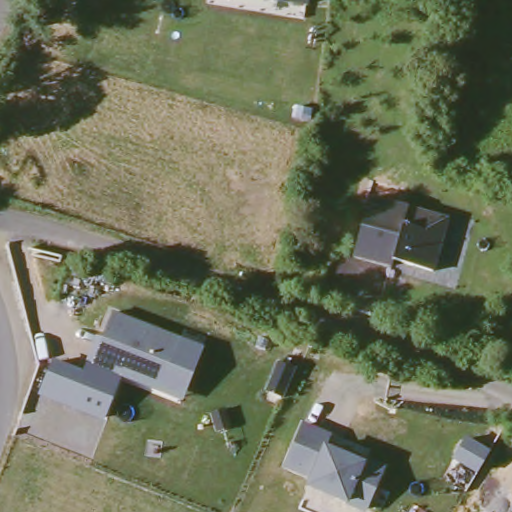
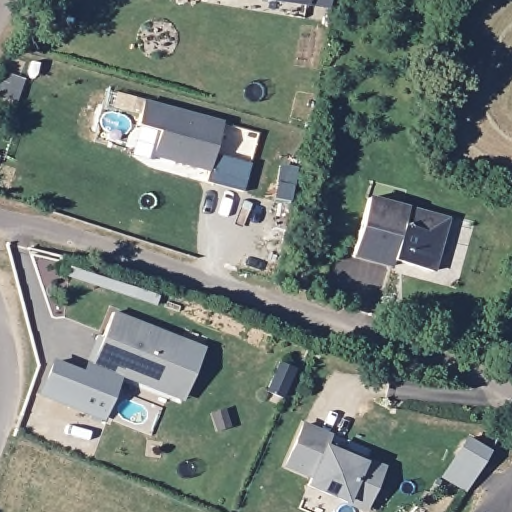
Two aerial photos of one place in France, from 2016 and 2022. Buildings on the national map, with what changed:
unchanged [(266,0),(307,0),(306,7),(266,0)]
new [(330,0),(329,9),(306,5),(307,0),(330,0)]
new [(208,173),(151,156),(159,131),(137,125),(144,101),(221,121),(214,153),(250,168),(242,195),(205,182),(208,173)]
unchanged [(390,260),(389,266),(350,255),(366,198),(434,216),(444,219),(439,236),(430,271),(390,260)]
unchanged [(159,386),(121,369),(117,378),(88,368),(113,312),(182,339),(159,386)]
unchanged [(182,339),(203,348),(184,396),(159,386),(182,339)]
unchanged [(101,420),(38,396),(55,357),(88,368),(117,378),(101,420)]
new [(282,364),(297,371),(284,400),(269,394),(282,364)]
unchanged [(332,434),(329,443),(384,466),(365,512),(363,512),(302,486),(307,478),(281,466),(302,422),(332,434)]
new [(464,436),(487,450),(476,469),(452,455),(464,436)]

